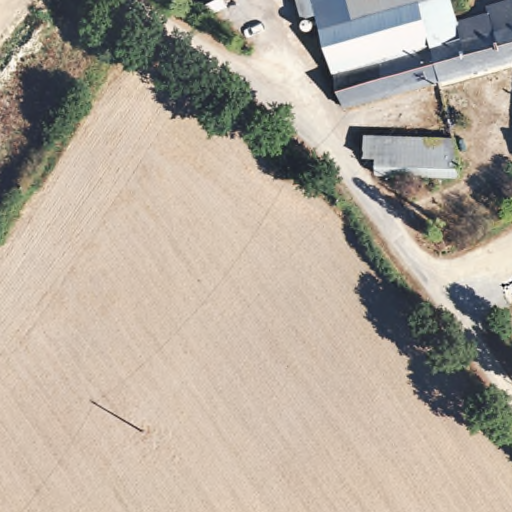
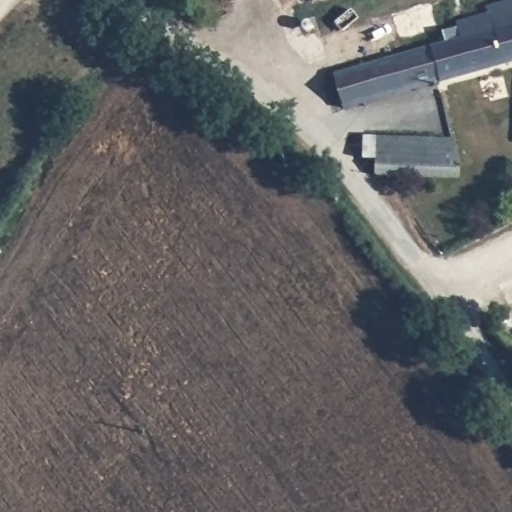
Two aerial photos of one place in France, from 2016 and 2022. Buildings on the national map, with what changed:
demolished [(288,0),(293,0),(289,1),(288,0)]
demolished [(447,0),(455,26),(459,41),(335,79),(309,0),(447,0)]
unchanged [(313,0),(326,0),(314,4),(313,0)]
unchanged [(459,41),(455,26),(483,19),(483,13),(509,4),(512,13),(512,63),(342,112),(335,79),(459,41)]
unchanged [(454,146),(456,169),(455,184),(381,177),(384,160),(368,160),(364,154),(365,138),(454,146)]

